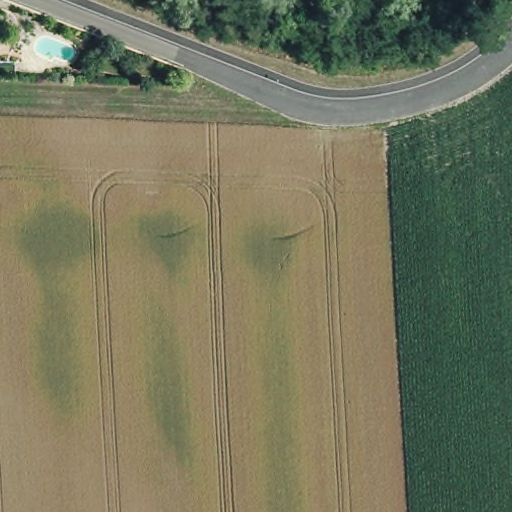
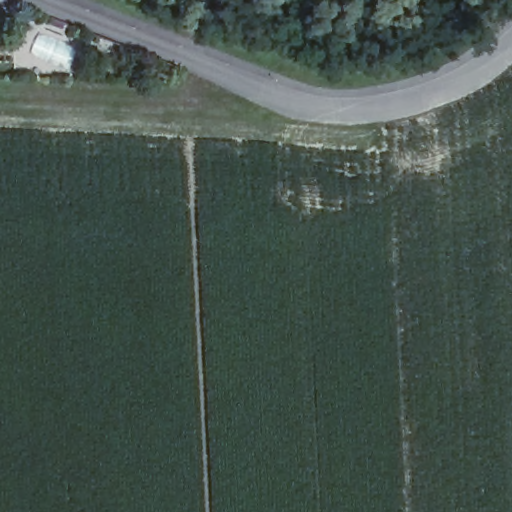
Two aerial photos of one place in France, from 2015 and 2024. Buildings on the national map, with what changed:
[]

